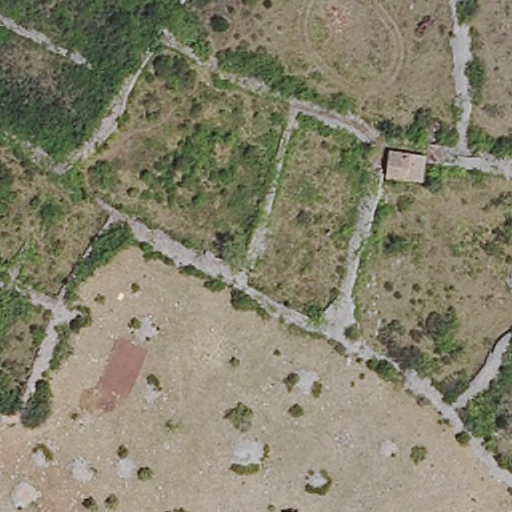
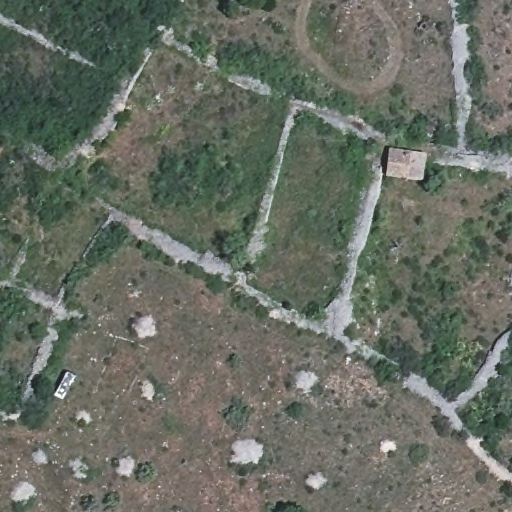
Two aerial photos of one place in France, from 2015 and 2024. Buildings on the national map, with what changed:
unchanged [(419,142),(420,122),(436,121),(434,145),(419,142)]
unchanged [(386,152),(422,154),(420,181),(382,178),(386,152)]

